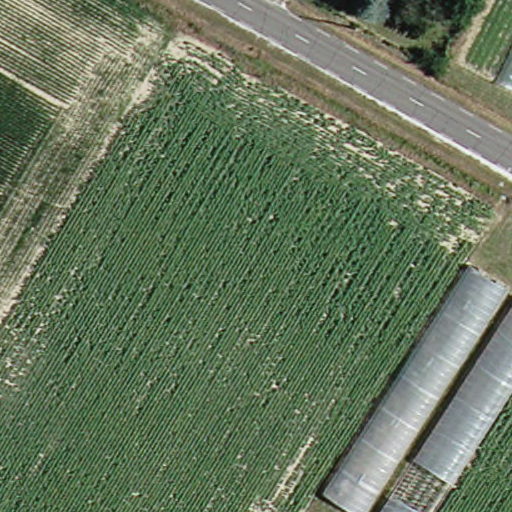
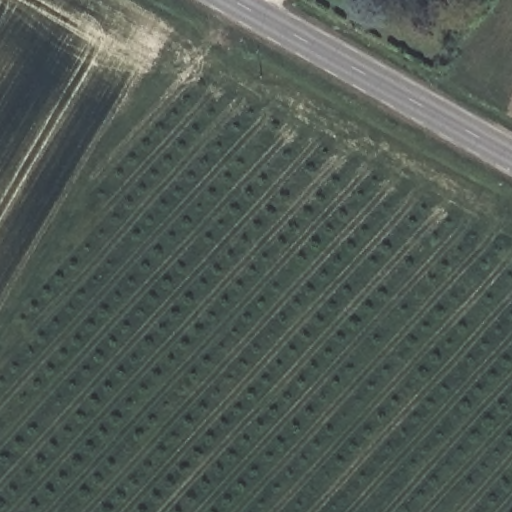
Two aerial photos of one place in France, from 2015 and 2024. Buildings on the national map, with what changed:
demolished [(355,512),(324,493),(469,265),(512,294),(512,297),(375,512),(355,512)]
demolished [(375,512),(512,297),(512,388),(433,512),(375,512)]

